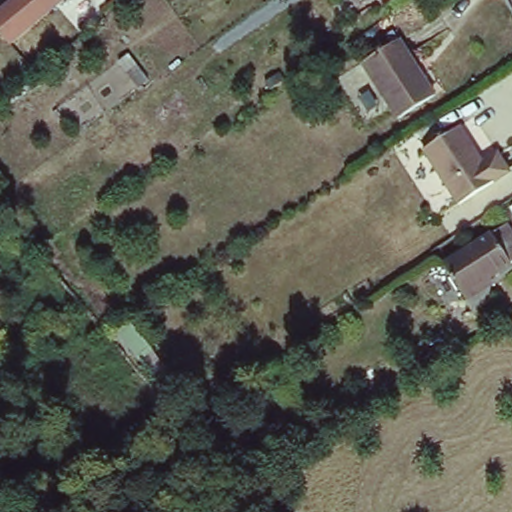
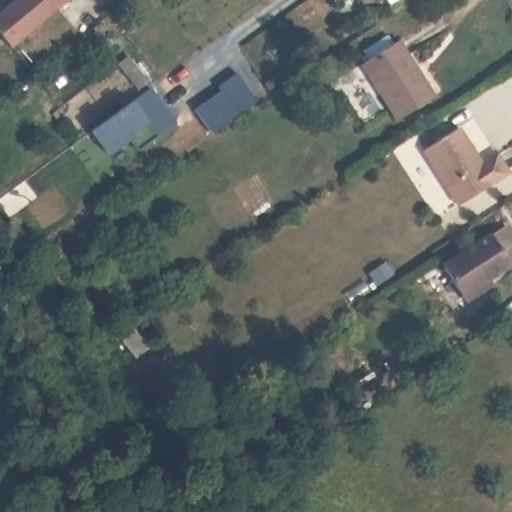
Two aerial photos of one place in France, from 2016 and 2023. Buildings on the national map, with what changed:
unchanged [(17,0),(62,0),(55,6),(11,42),(0,28),(0,14),(17,0)]
unchanged [(395,122),(387,107),(363,64),(400,43),(424,83),(434,98),(395,122)]
new [(221,93),(218,89),(239,75),(257,102),(210,134),(194,112),(221,93)]
new [(150,89),(175,122),(134,152),(126,142),(108,155),(91,132),(150,89)]
unchanged [(456,125),(477,155),(482,152),(496,172),(456,199),(420,150),(456,125)]
unchanged [(512,265),(468,296),(442,267),(487,232),(512,261),(512,265)]

